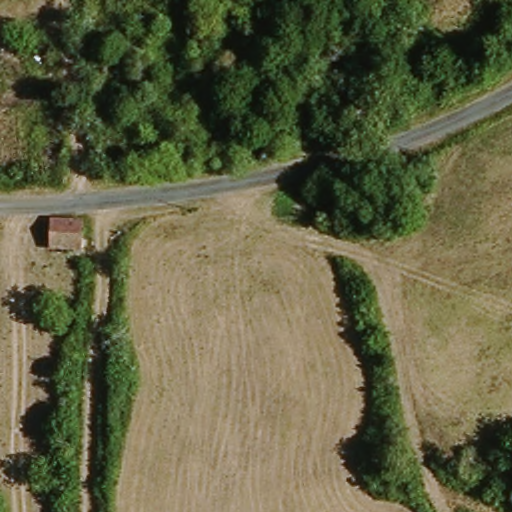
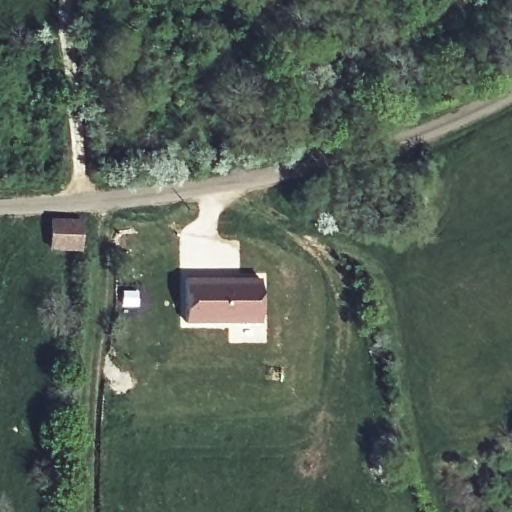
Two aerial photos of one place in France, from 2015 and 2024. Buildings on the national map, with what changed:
unchanged [(47,217),(77,217),(77,245),(47,245),(47,217)]
new [(263,322),(186,322),(186,278),(262,278),(263,322)]

